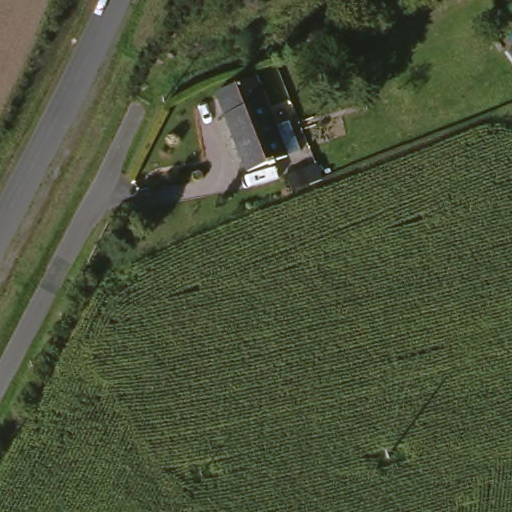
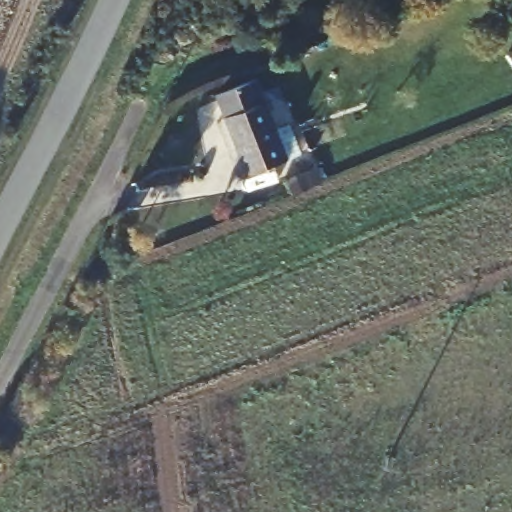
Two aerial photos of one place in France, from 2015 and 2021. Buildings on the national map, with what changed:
unchanged [(262,75),(295,158),(253,172),(222,91),(262,75)]

